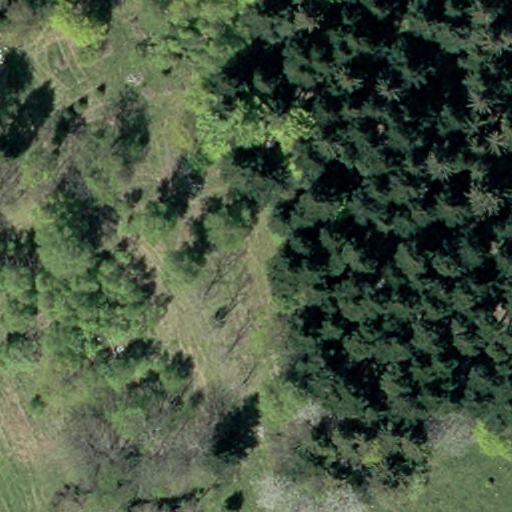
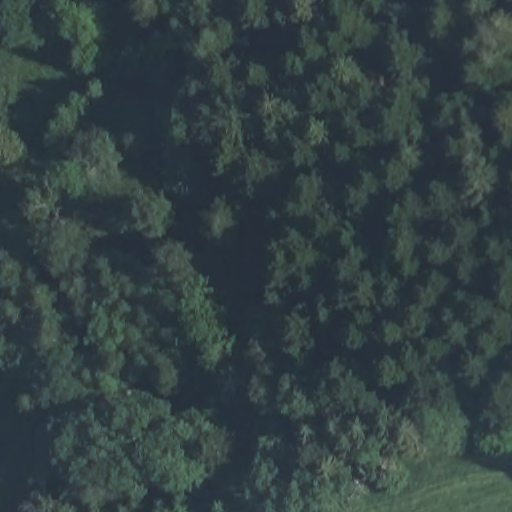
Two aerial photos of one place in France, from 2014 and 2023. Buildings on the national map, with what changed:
unchanged [(108,330),(122,365),(99,373),(89,336),(108,330)]

